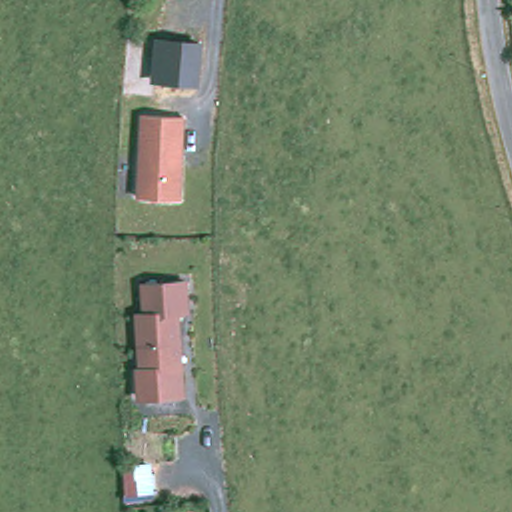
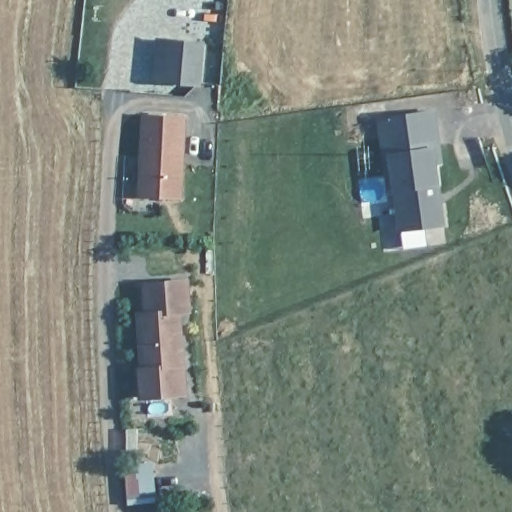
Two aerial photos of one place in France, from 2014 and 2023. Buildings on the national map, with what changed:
unchanged [(203,45),(200,85),(198,85),(165,83),(156,81),(159,41),(168,42),(202,45),(203,45)]
new [(437,164),(440,189),(447,228),(397,234),(391,191),(385,191),(376,118),(436,110),(443,164),(437,164)]
unchanged [(186,118),(182,201),(141,199),(145,116),(186,118)]
unchanged [(188,277),(191,313),(182,314),(187,396),(139,399),(135,365),(138,365),(135,310),(142,310),(142,282),(188,277)]

